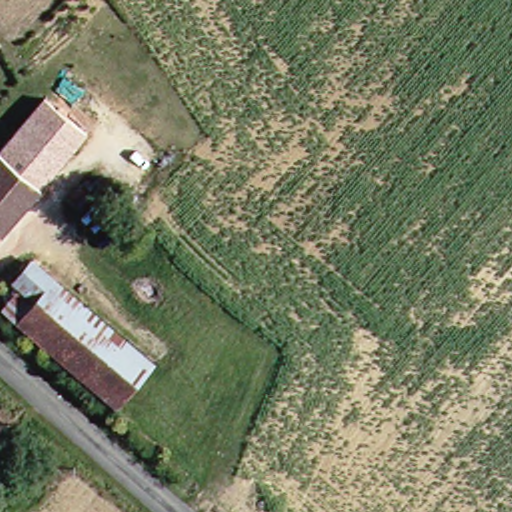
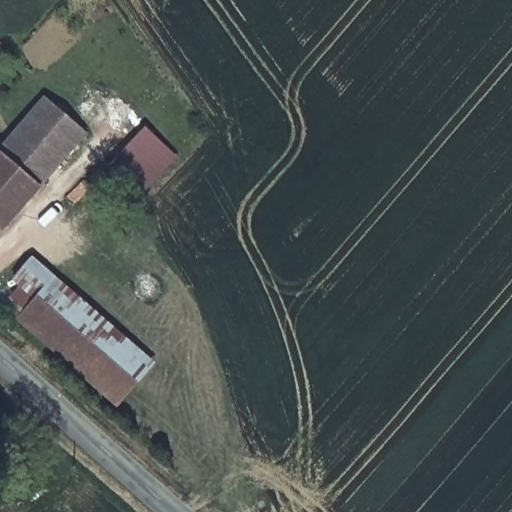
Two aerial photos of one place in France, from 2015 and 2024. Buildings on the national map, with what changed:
unchanged [(37,105),(42,100),(82,135),(65,155),(0,228),(0,147),(37,105)]
new [(177,157),(142,195),(110,165),(145,127),(177,157)]
unchanged [(27,260),(145,364),(114,402),(1,304),(16,287),(10,278),(27,260)]

